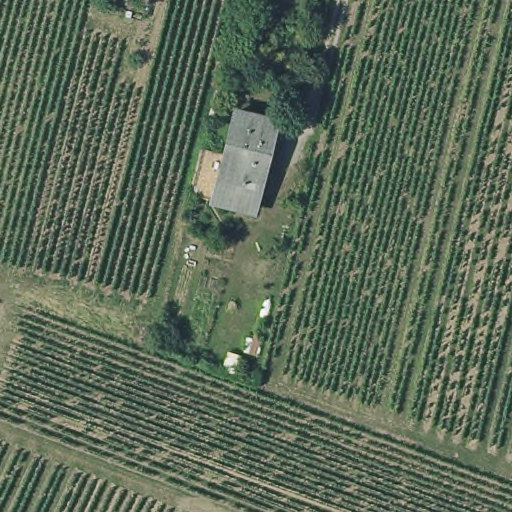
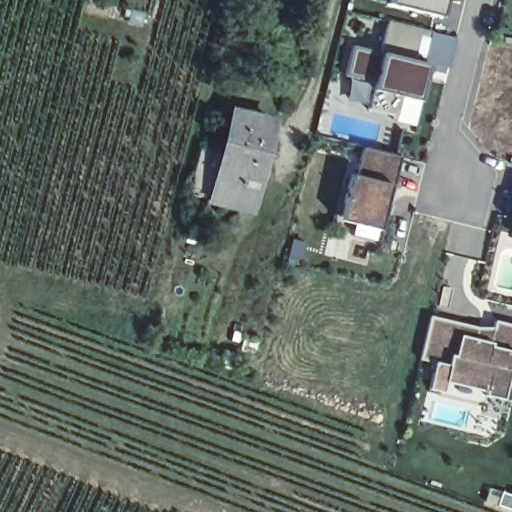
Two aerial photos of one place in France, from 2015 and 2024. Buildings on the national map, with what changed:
new [(446,17),(390,6),(393,0),(449,0),(446,17)]
unchanged [(237,37),(241,21),(250,24),(253,24),(250,40),(247,40),(237,37)]
new [(418,80),(422,81),(417,100),(400,96),(395,116),(368,110),(373,84),(345,77),(352,47),(379,53),(387,21),(430,31),(418,80)]
unchanged [(219,174),(225,152),(235,111),(276,122),(260,185),(259,184),(220,174),(219,174)]
unchanged [(213,199),(190,193),(202,146),(225,152),(219,174),(220,174),(213,199)]
new [(383,233),(340,222),(360,150),(402,157),(383,233)]
unchanged [(220,174),(259,184),(252,209),(213,199),(220,174)]
new [(511,355),(500,402),(482,399),(481,403),(426,389),(433,362),(417,358),(427,320),(490,336),(493,321),(512,326),(512,355),(511,355)]

